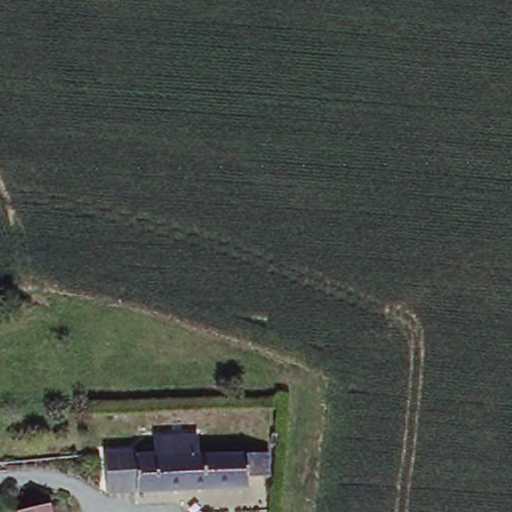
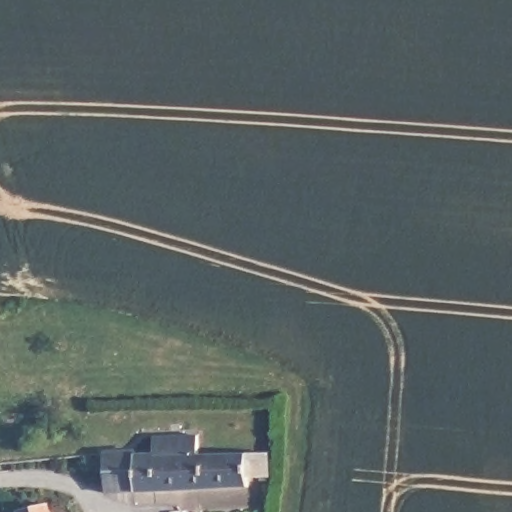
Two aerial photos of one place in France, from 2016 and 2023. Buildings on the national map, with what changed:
unchanged [(241,475),(242,483),(133,488),(132,452),(151,451),(149,434),(197,430),(200,452),(265,451),(268,473),(241,475)]
unchanged [(265,451),(267,431),(279,431),(278,453),(265,451)]
unchanged [(131,447),(132,452),(133,488),(103,489),(100,451),(131,447)]
unchanged [(54,506),(55,512),(23,512),(22,510),(54,506)]

